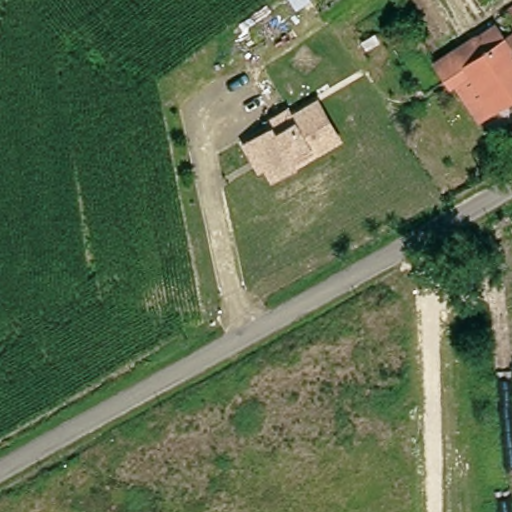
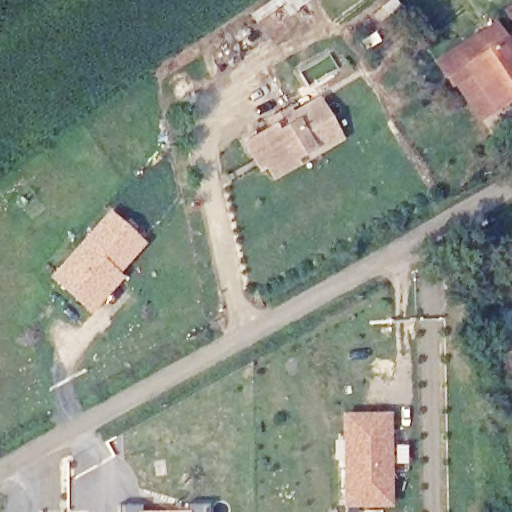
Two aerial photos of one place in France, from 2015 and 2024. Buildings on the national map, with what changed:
unchanged [(510,37),(501,23),(512,15),(512,105),(490,122),(463,86),(444,98),(426,72),(474,38),(487,54),(510,37)]
unchanged [(252,167),(244,154),(271,138),(267,132),(287,120),(291,126),(317,111),(339,149),(312,164),(309,159),(291,170),(294,175),(273,187),(266,175),(259,179),(252,167)]
new [(101,301),(89,314),(53,281),(109,218),(141,247),(115,277),(119,281),(101,301)]
new [(340,414),(389,415),(390,509),(342,508),(340,414)]

